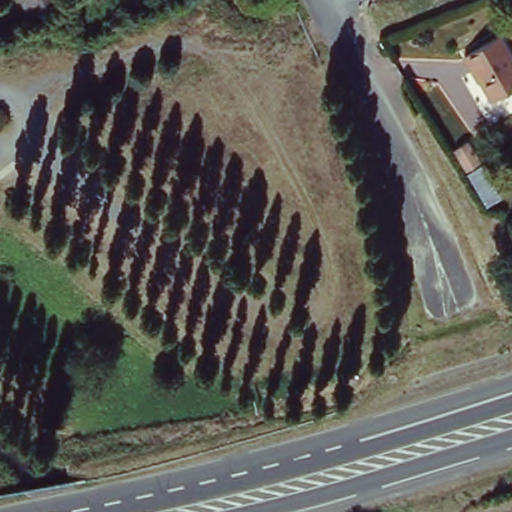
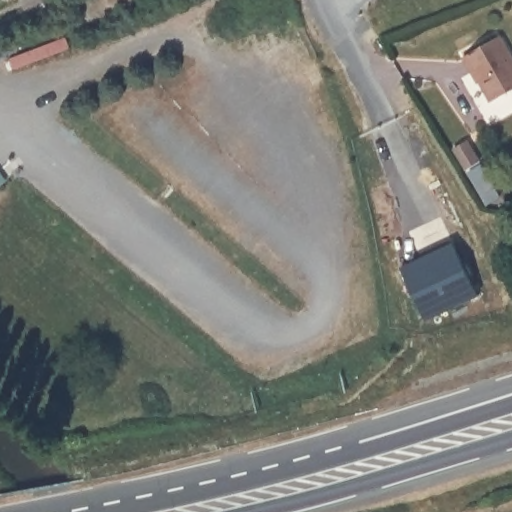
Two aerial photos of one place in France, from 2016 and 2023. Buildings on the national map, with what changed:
unchanged [(18,0),(61,0),(25,17),(18,0)]
unchanged [(384,21),(388,30),(379,32),(376,25),(384,21)]
unchanged [(463,57),(498,36),(512,61),(512,90),(493,101),(481,81),(478,83),(472,74),(463,57)]
new [(451,236),(480,295),(426,322),(395,260),(451,236)]

